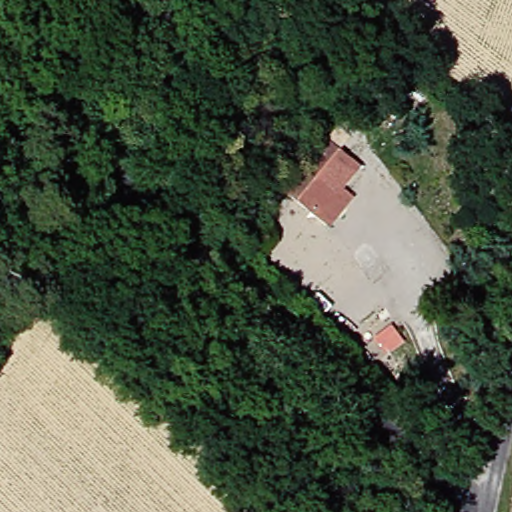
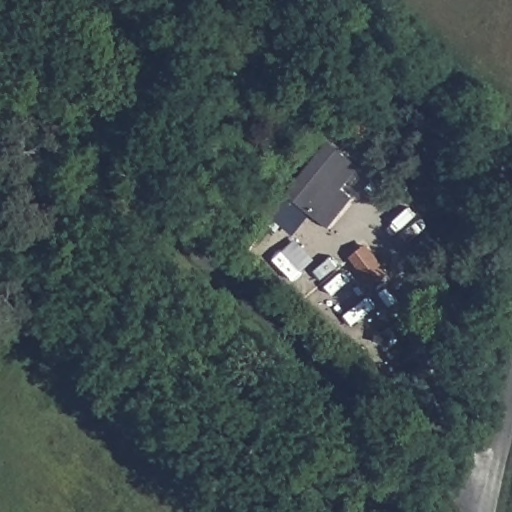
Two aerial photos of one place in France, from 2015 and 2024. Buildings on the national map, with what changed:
unchanged [(406,99),(385,85),(390,77),(401,85),(403,82),(413,89),(406,99)]
unchanged [(370,97),(365,106),(356,99),(362,91),(370,97)]
unchanged [(341,224),(331,215),(302,192),(342,144),(370,168),(352,189),(362,198),(341,224)]

